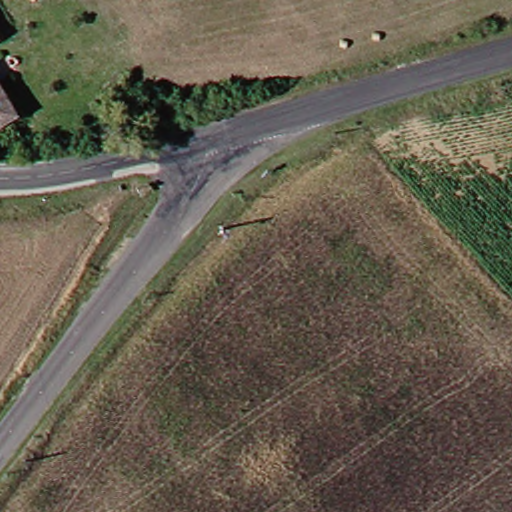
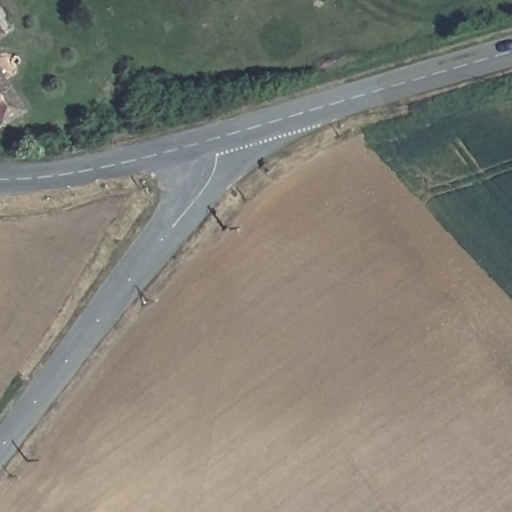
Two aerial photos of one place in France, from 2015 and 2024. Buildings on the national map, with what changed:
unchanged [(0,43),(0,18),(10,37),(0,43)]
unchanged [(8,127),(3,117),(0,118),(0,62),(29,112),(8,127)]

